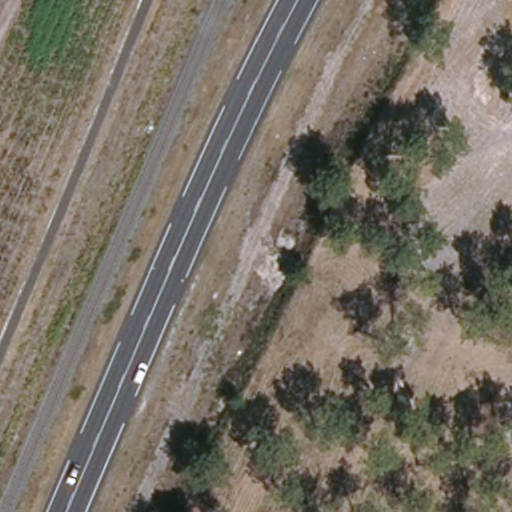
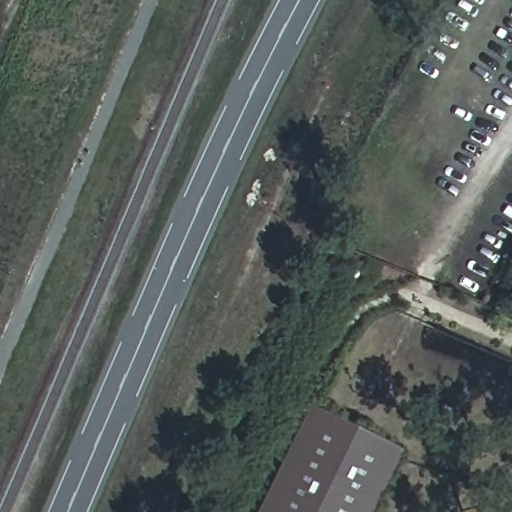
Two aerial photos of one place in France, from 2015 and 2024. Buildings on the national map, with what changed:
new [(371,512),(254,512),(307,405),(400,449),(371,512)]

